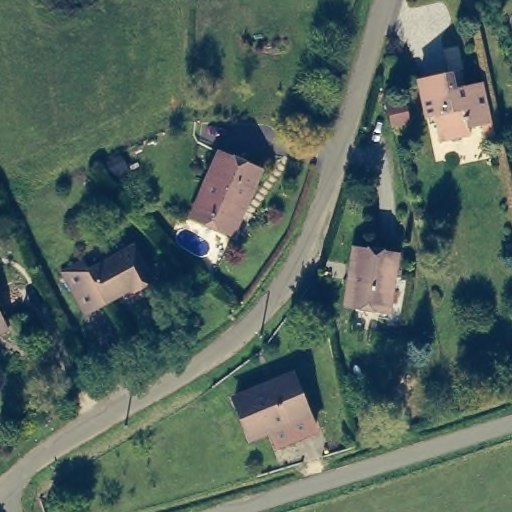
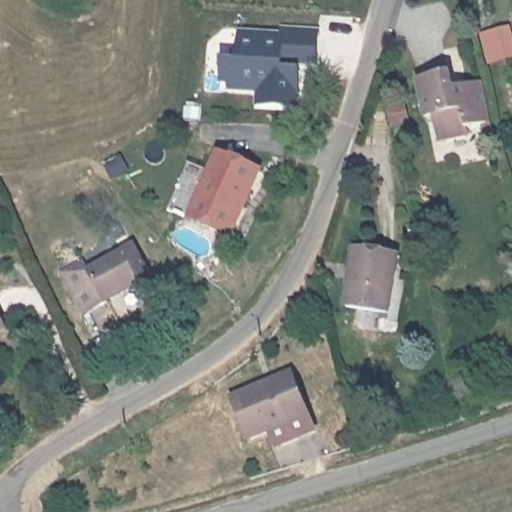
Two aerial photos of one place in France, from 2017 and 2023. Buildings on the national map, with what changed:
new [(222,59),(237,60),(240,32),(282,36),(282,29),(317,32),(315,63),(281,61),(280,68),(298,69),(295,106),(257,104),(258,89),(228,87),(228,81),(221,80),(222,59)]
unchanged [(485,140),(482,125),(467,127),(468,134),(437,140),(433,116),(425,117),(418,79),(450,72),(452,89),(482,82),(490,123),(493,138),(485,140)]
unchanged [(412,91),(416,111),(402,114),(398,94),(412,91)]
unchanged [(218,153),(259,171),(233,232),(192,214),(218,153)]
unchanged [(63,273),(85,262),(91,273),(138,248),(155,278),(85,315),(63,273)]
unchanged [(396,256),(390,312),(350,306),(357,250),(396,256)]
unchanged [(0,312),(0,305),(3,311),(0,312)]
unchanged [(292,373),(310,428),(278,439),(273,422),(244,432),(231,393),(292,373)]

